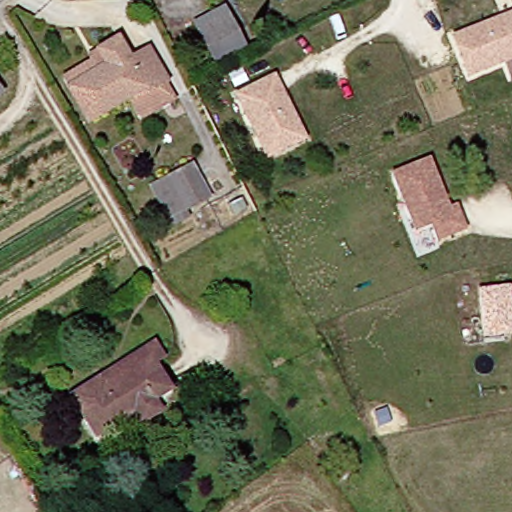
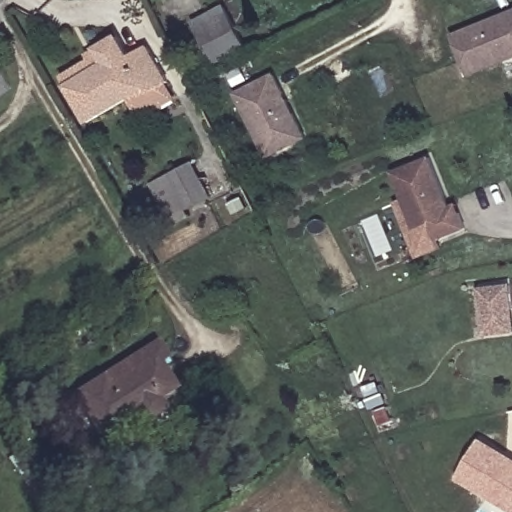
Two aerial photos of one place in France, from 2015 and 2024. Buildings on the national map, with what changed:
unchanged [(252,49),(222,64),(200,22),(230,7),(252,49)]
unchanged [(455,35),(480,27),(491,24),(512,17),(512,62),(468,76),(455,35)]
unchanged [(146,119),(134,99),(96,122),(74,86),(69,77),(98,60),(95,54),(102,50),(124,37),(137,58),(154,47),(175,82),(172,84),(181,99),(146,119)]
unchanged [(269,158),(237,95),(275,76),(289,104),(295,115),(307,139),(269,158)]
unchanged [(4,91),(0,94),(0,86),(4,91)]
unchanged [(460,215),(467,232),(437,244),(431,229),(416,235),(392,175),(430,160),(450,210),(457,207),(460,215)]
unchanged [(198,164),(214,197),(174,218),(157,185),(198,164)]
unchanged [(512,291),(512,336),(490,340),(482,293),(512,288),(512,291)]
unchanged [(145,425),(137,412),(100,435),(76,397),(106,378),(160,344),(168,358),(161,362),(177,388),(159,399),(167,411),(145,425)]
new [(481,437),(512,457),(512,512),(510,512),(455,479),(481,437)]

